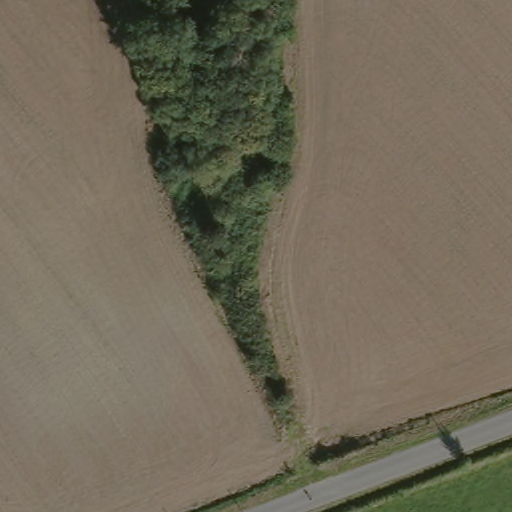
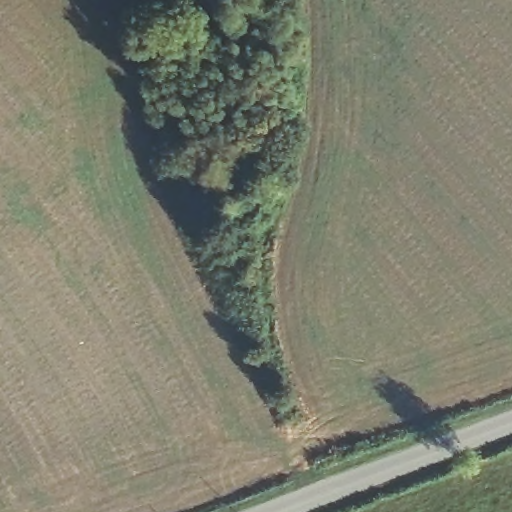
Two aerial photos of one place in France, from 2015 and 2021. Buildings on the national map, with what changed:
[]

